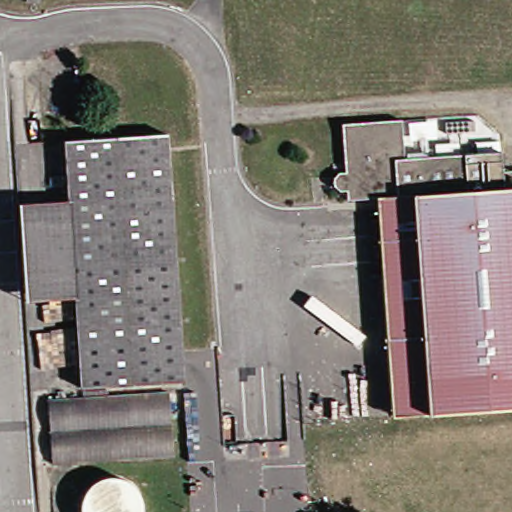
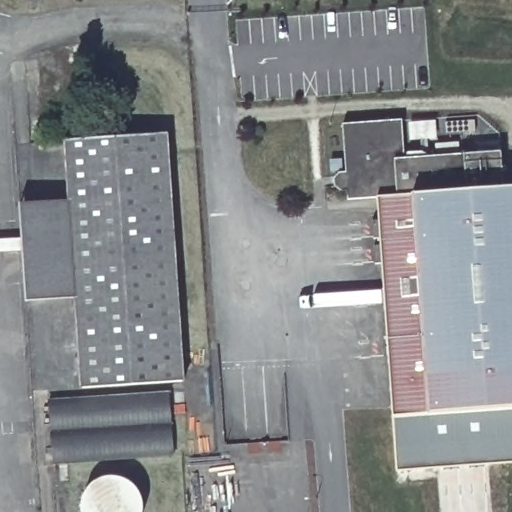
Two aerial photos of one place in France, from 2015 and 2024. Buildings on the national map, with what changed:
unchanged [(503,154),(505,193),(512,192),(512,411),(392,418),(382,200),(352,201),(351,192),(342,191),(339,186),(339,180),(342,178),(346,176),(351,177),(348,125),(408,122),(411,161),(503,154)]
unchanged [(79,386),(73,297),(67,201),(62,141),(169,135),(186,379),(79,386)]
unchanged [(71,298),(24,301),(18,202),(64,201),(67,201),(73,297),(71,298)]
unchanged [(54,464),(51,402),(171,393),(174,455),(54,464)]
new [(396,472),(392,418),(512,411),(512,463),(396,472)]
unchanged [(85,512),(86,501),(88,492),(99,481),(110,477),(123,479),(136,485),(144,495),(146,506),(145,512),(85,512)]

